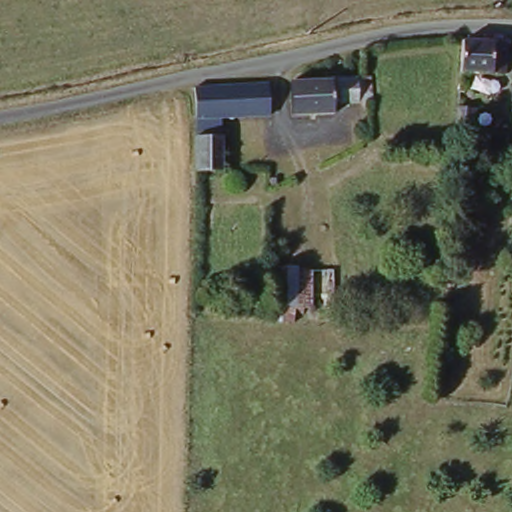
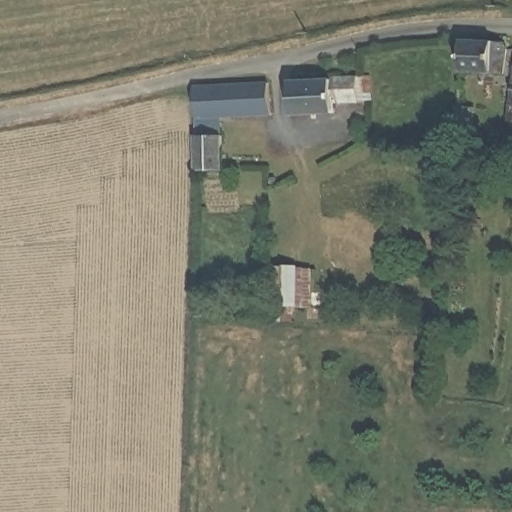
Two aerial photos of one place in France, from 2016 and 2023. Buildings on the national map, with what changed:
unchanged [(507,80),(461,76),(462,43),(510,42),(507,80)]
unchanged [(357,100),(357,111),(332,110),(332,121),(290,122),(291,87),(370,82),(370,100),(357,100)]
unchanged [(195,152),(195,141),(195,95),(202,93),(267,91),(268,117),(223,121),(223,150),(223,185),(195,186),(195,152)]
unchanged [(475,102),(473,135),(457,134),(459,101),(475,102)]
unchanged [(333,275),(332,310),(274,310),(273,273),(333,275)]

